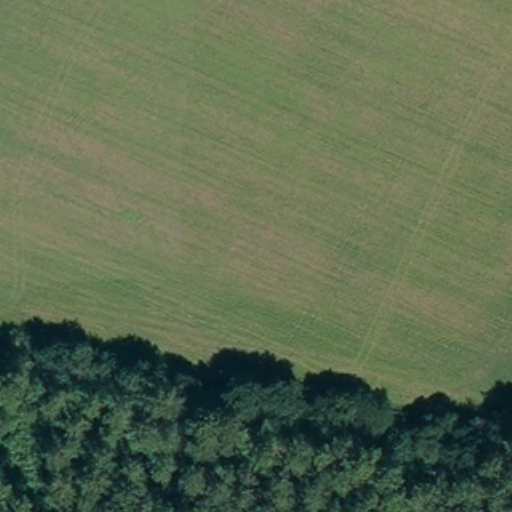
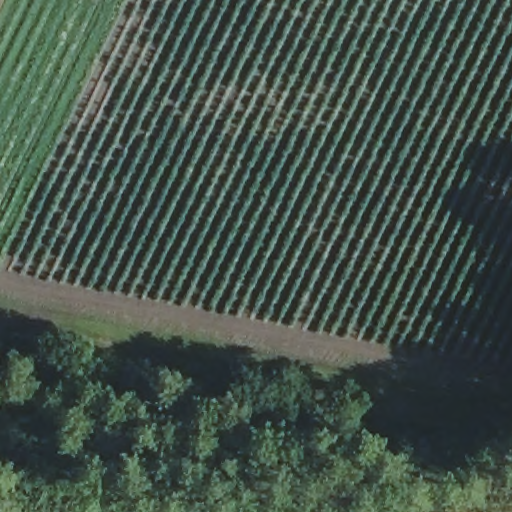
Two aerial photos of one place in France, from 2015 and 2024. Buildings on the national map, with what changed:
[]

